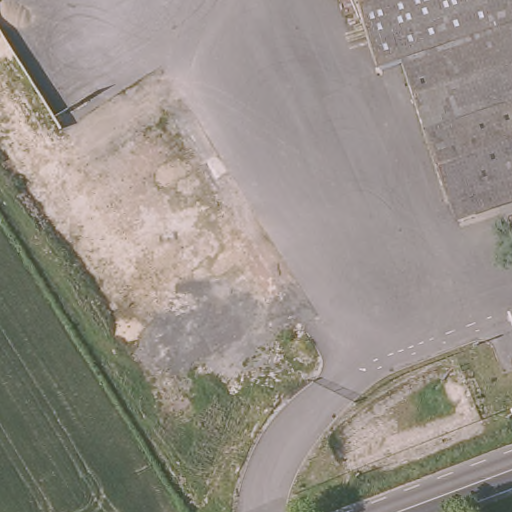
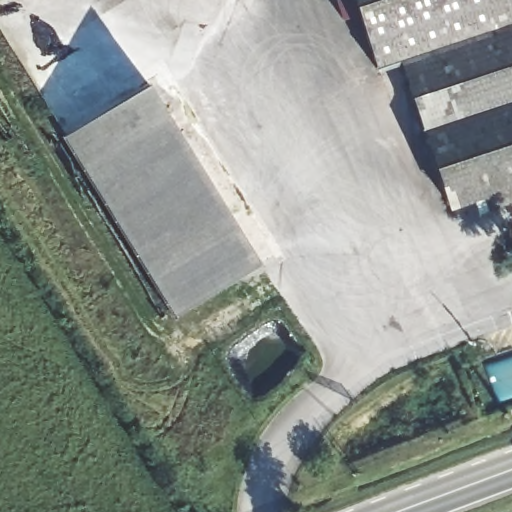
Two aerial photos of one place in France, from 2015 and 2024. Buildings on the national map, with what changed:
unchanged [(367,70),(344,0),(512,0),(512,21),(391,62),(367,70)]
unchanged [(512,210),(449,231),(391,62),(512,21),(512,210)]
new [(153,85),(263,265),(177,318),(67,138),(153,85)]

